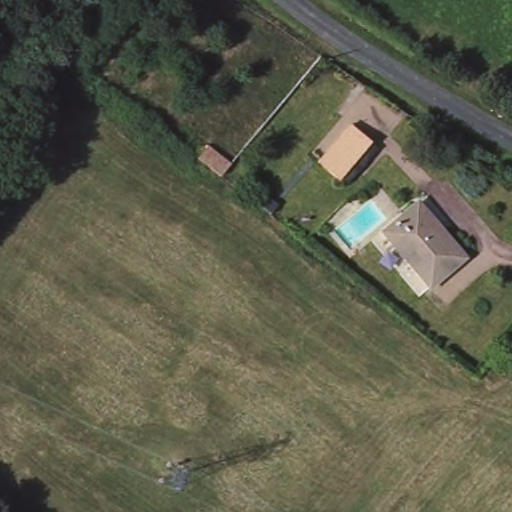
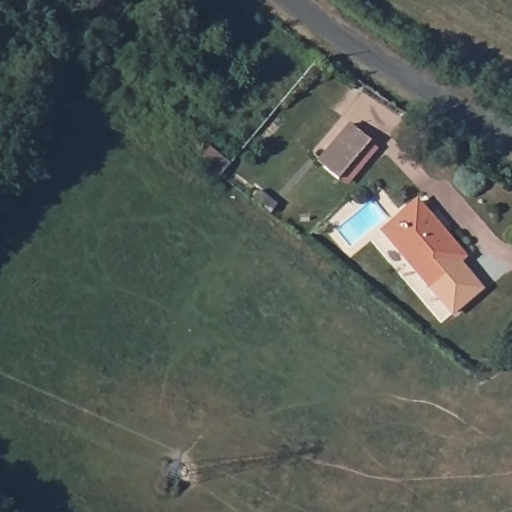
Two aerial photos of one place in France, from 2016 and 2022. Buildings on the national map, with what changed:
unchanged [(371,144),(340,182),(320,166),(352,128),(371,144)]
unchanged [(462,257),(430,287),(380,235),(412,205),(462,257)]

